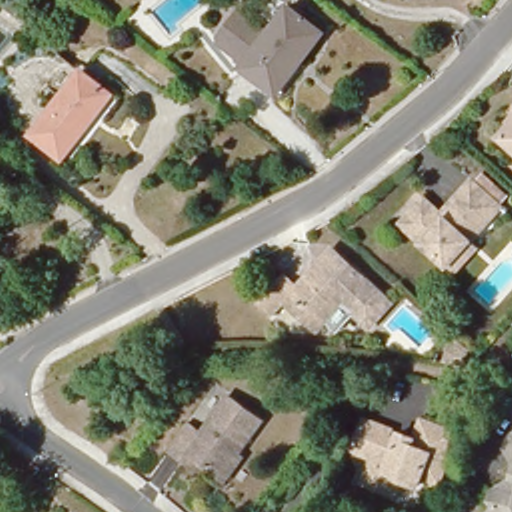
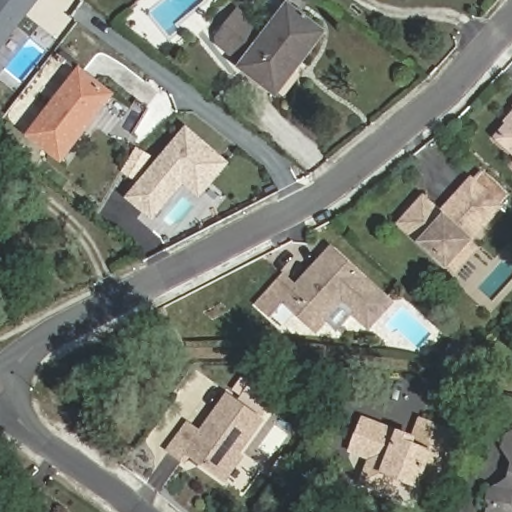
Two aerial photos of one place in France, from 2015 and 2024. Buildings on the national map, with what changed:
new [(0,46),(0,0),(36,0),(26,12),(0,46)]
unchanged [(267,93),(237,69),(241,64),(269,30),(288,6),(325,35),(296,73),(275,99),(267,93)]
unchanged [(269,30),(241,64),(215,43),(244,10),(269,30)]
unchanged [(107,96),(56,162),(23,137),(75,71),(107,96)]
unchanged [(500,138),(510,128),(507,117),(512,113),(512,150),(500,138)]
new [(187,127),(226,160),(200,191),(184,177),(153,213),(130,194),(187,127)]
unchanged [(447,270),(441,265),(400,228),(420,201),(435,214),(443,206),(465,181),(492,207),(465,239),(471,244),(447,270)]
unchanged [(334,248),(364,276),(390,301),(369,325),(341,302),(336,299),(323,313),(326,319),(315,331),(281,302),(271,311),(259,299),(283,273),(296,286),(334,248)]
unchanged [(225,484),(219,479),(189,455),(183,462),(170,451),(187,426),(202,436),(230,399),(260,423),(236,454),(243,460),(225,484)]
unchanged [(368,457),(352,452),(355,444),(364,417),(390,427),(414,436),(420,419),(457,433),(452,446),(455,451),(450,463),(442,467),(437,484),(421,478),(417,489),(398,481),(393,495),(368,485),(361,482),(368,457)]
unchanged [(480,497),(505,481),(511,463),(498,444),(512,438),(512,512),(488,512),(480,497)]

